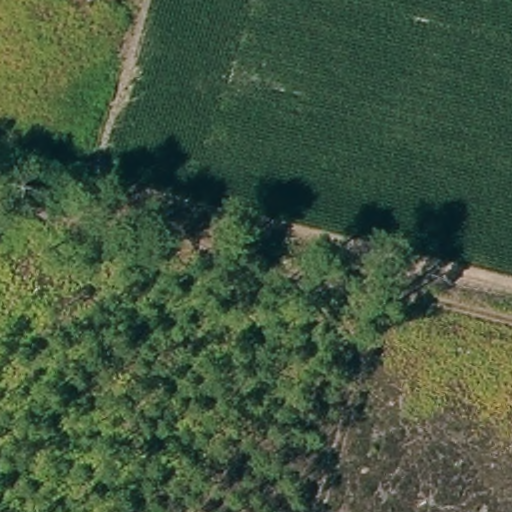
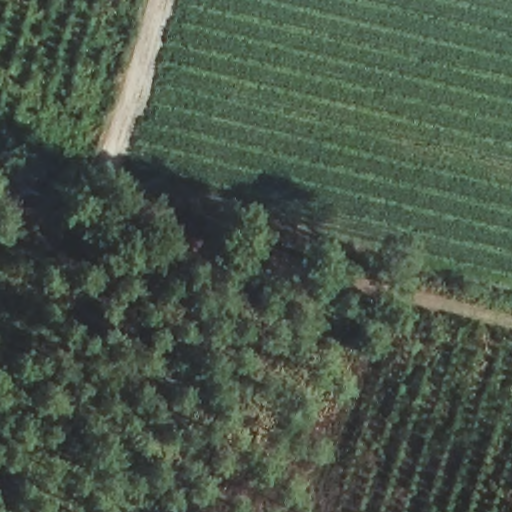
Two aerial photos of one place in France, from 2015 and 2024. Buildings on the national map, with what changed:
[]

